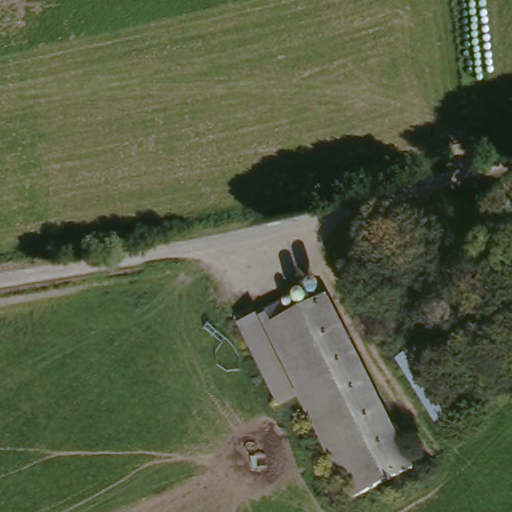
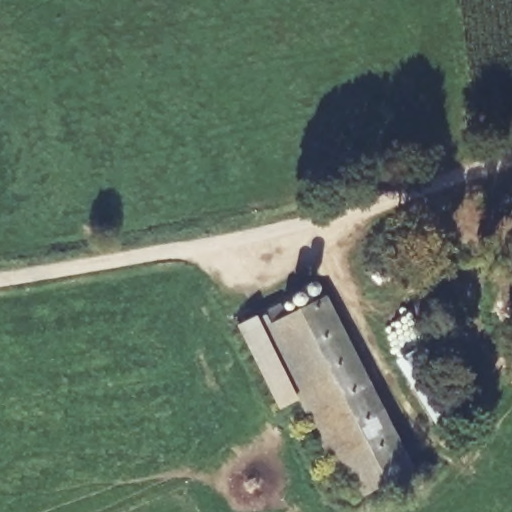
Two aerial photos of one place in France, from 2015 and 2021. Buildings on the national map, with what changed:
unchanged [(348,500),(259,330),(264,326),(259,314),(274,306),(282,318),(319,297),(409,468),(348,500)]
unchanged [(277,410),(236,330),(251,322),(292,402),(277,410)]
unchanged [(422,341),(464,405),(428,430),(382,367),(422,341)]

